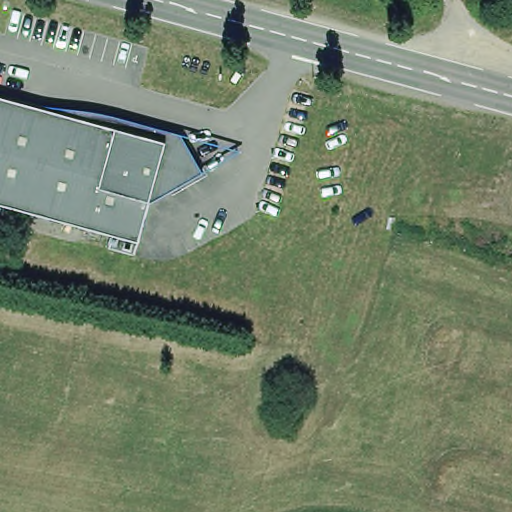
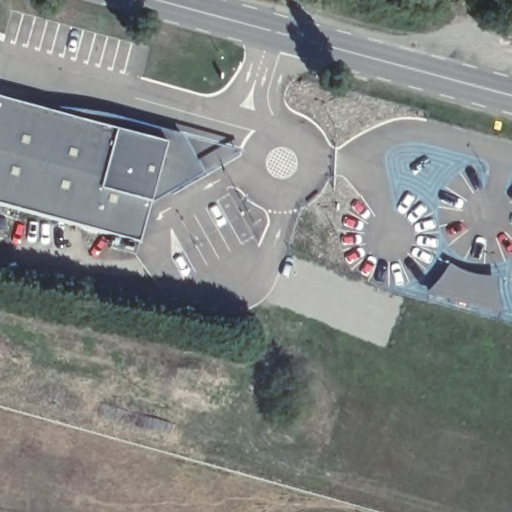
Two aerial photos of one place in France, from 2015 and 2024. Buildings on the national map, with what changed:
unchanged [(104,253),(107,242),(0,213),(0,105),(112,135),(127,127),(177,140),(197,180),(145,211),(135,250),(132,262),(104,253)]
new [(434,297),(442,266),(507,282),(499,315),(434,297)]

